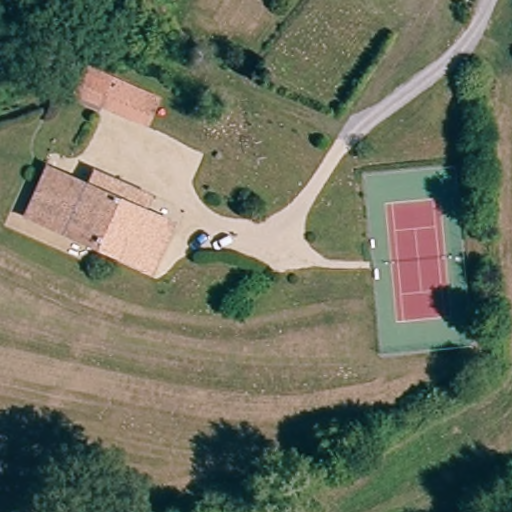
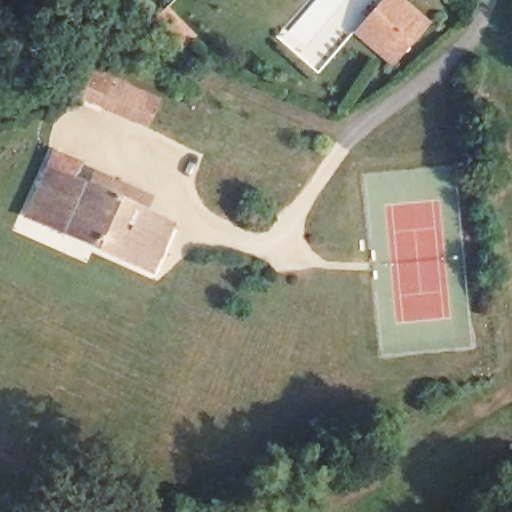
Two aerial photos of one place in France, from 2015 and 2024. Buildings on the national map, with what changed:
new [(396,0),(423,26),(391,60),(359,31),(388,0),(396,0)]
unchanged [(88,65),(157,101),(143,126),(74,90),(88,65)]
unchanged [(24,221),(42,188),(56,161),(72,170),(73,166),(92,177),(90,181),(102,188),(112,171),(139,186),(163,200),(155,216),(174,227),(142,285),(81,252),(58,239),(38,228),(24,221)]

